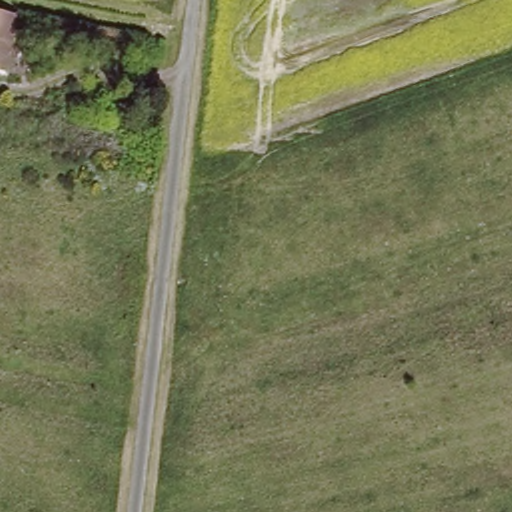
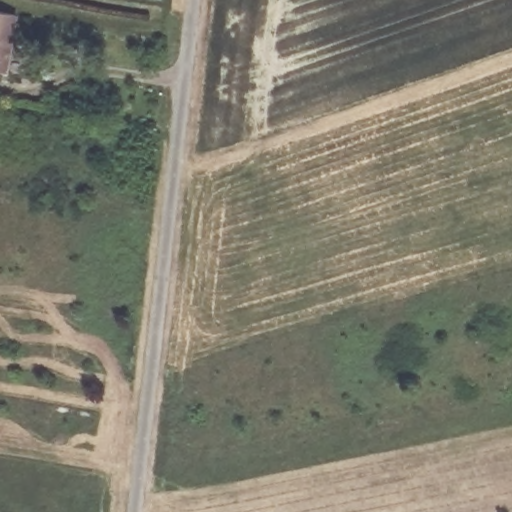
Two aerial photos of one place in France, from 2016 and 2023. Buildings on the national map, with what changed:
unchanged [(0,69),(0,7),(17,11),(14,22),(6,70),(0,69)]

